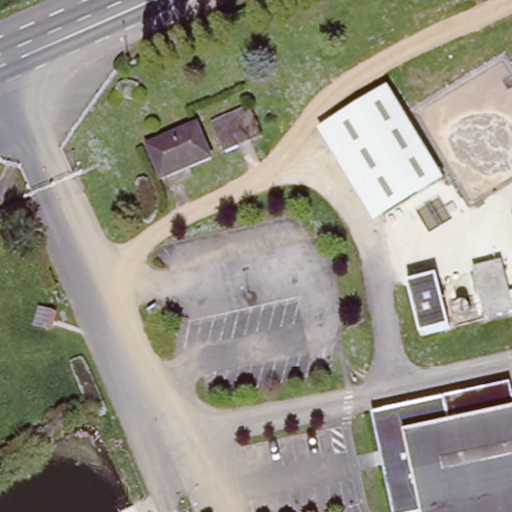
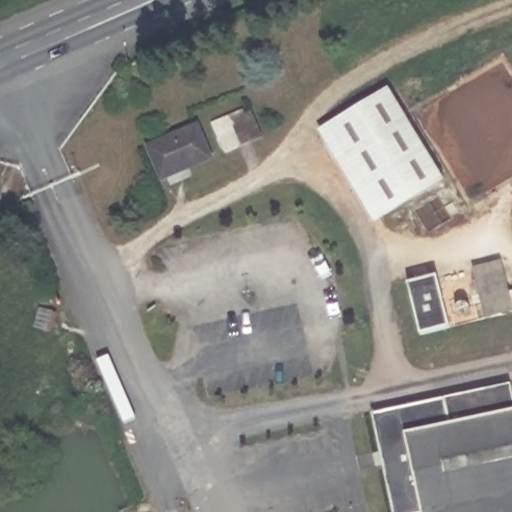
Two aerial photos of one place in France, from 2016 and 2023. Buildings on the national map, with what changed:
unchanged [(387,87),(444,180),(374,223),(317,130),(387,87)]
unchanged [(239,146),(225,152),(214,126),(252,111),(256,121),(263,136),(239,146)]
unchanged [(196,125),(210,157),(162,178),(148,145),(196,125)]
unchanged [(508,292),(512,290),(512,309),(485,316),(474,267),(500,261),(508,292)]
unchanged [(437,275),(449,327),(419,333),(407,282),(437,275)]
unchanged [(422,512),(419,512),(393,512),(372,412),(509,384),(512,398),(512,512),(422,512)]

